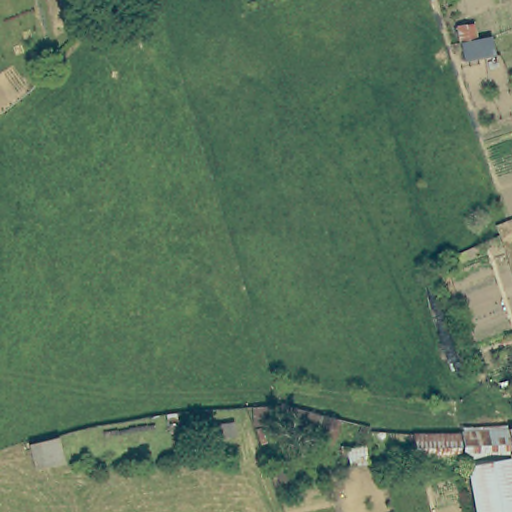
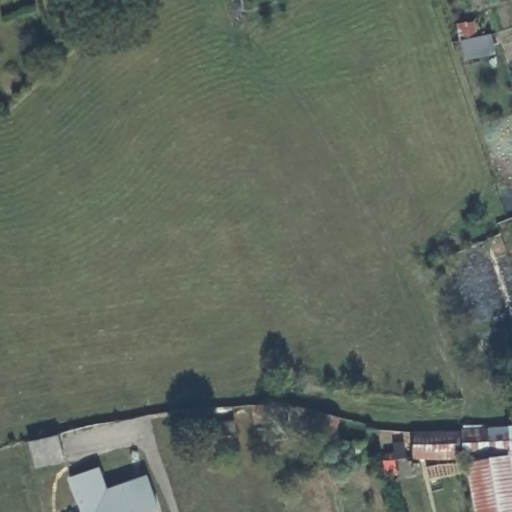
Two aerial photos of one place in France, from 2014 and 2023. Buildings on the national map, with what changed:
unchanged [(492,52),(466,57),(463,39),(488,34),(492,52)]
unchanged [(333,436),(316,432),(317,428),(287,420),(258,423),(255,402),(285,398),(339,414),(333,436)]
unchanged [(236,418),(239,431),(211,436),(209,422),(236,418)]
unchanged [(512,427),(512,512),(474,512),(466,462),(462,462),(463,432),(510,427),(512,427)]
unchanged [(453,461),(408,457),(412,430),(436,432),(457,433),(453,461)]
new [(99,468),(106,490),(146,475),(158,512),(80,512),(69,479),(99,468)]

